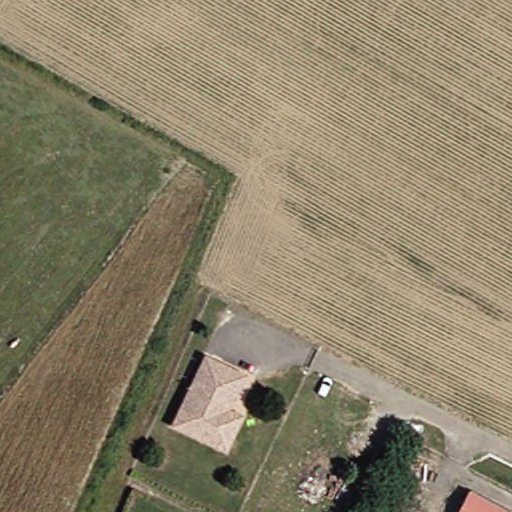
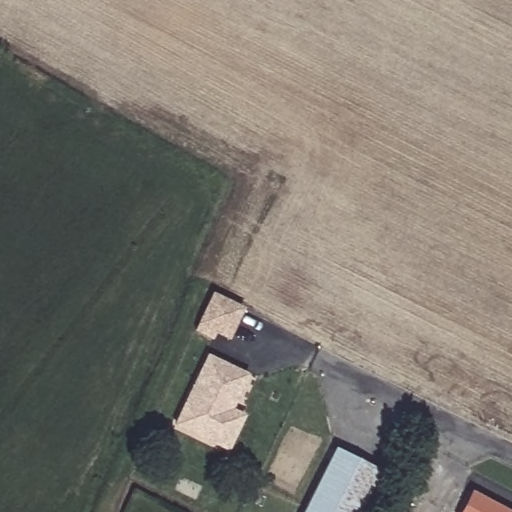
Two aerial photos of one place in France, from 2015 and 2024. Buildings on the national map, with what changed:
new [(245,308),(230,341),(217,335),(214,340),(196,332),(213,293),(245,308)]
unchanged [(226,449),(210,441),(176,425),(208,357),(246,375),(229,411),(242,417),(226,449)]
new [(384,468),(362,512),(306,512),(340,446),(384,468)]
unchanged [(512,512),(464,512),(477,488),(512,507),(512,512)]

